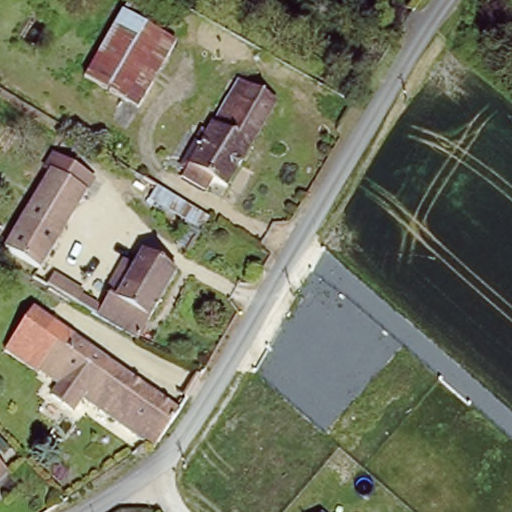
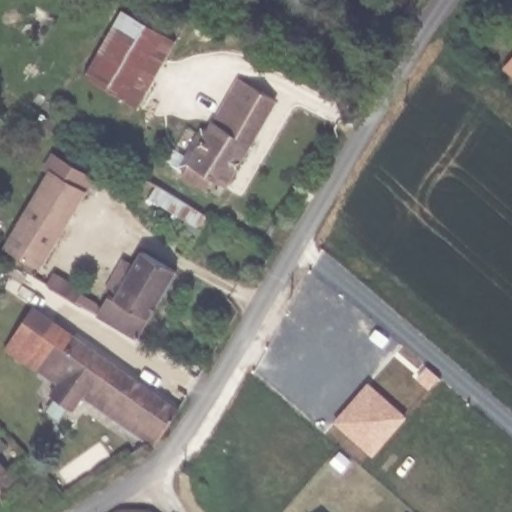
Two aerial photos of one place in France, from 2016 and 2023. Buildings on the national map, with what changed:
unchanged [(177,47),(139,112),(87,81),(127,16),(177,47)]
unchanged [(184,180),(189,172),(183,169),(204,134),(210,138),(242,84),(280,106),(222,202),(184,180)]
unchanged [(12,247),(8,253),(1,249),(52,168),(49,166),(57,154),(95,178),(40,265),(12,247)]
unchanged [(100,317),(113,295),(110,292),(127,263),(135,268),(144,255),(177,275),(138,340),(100,317)]
unchanged [(49,287),(55,276),(80,291),(74,302),(49,287)]
unchanged [(47,380),(46,381),(5,353),(37,308),(77,336),(74,340),(47,380)]
unchanged [(74,340),(178,411),(155,449),(86,401),(83,406),(66,395),(67,393),(47,380),(74,340)]
new [(426,367),(437,376),(427,388),(416,379),(426,367)]
new [(371,453),(339,425),(333,420),(367,383),(372,388),(404,416),(371,453)]

